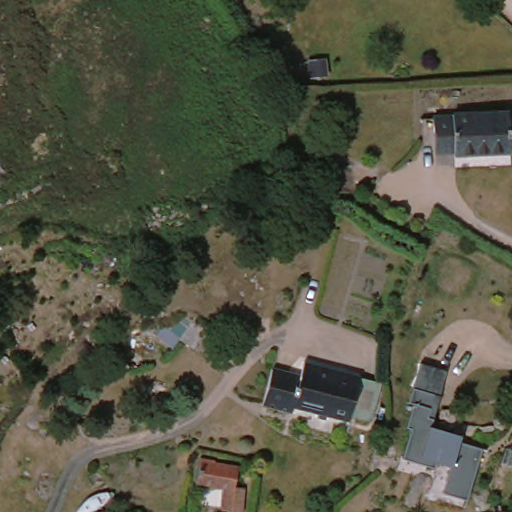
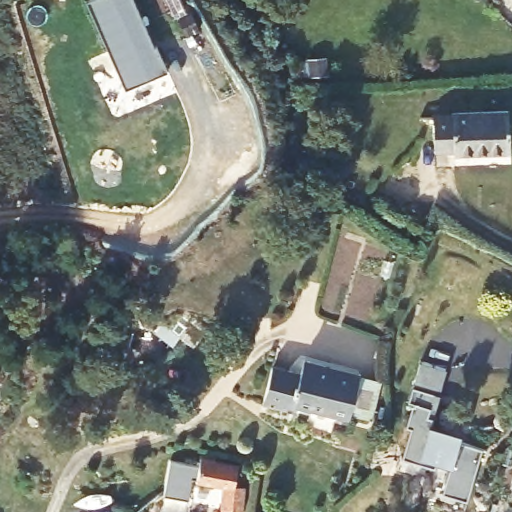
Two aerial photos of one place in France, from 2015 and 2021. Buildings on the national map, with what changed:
new [(89,0),(134,0),(154,44),(156,44),(169,70),(126,89),(87,1),(89,0)]
unchanged [(456,162),(456,158),(434,160),(433,125),(449,124),(449,120),(507,116),(511,159),(456,162)]
unchanged [(474,496),(443,487),(451,461),(399,448),(415,397),(409,394),(420,357),(448,363),(434,420),(469,429),(468,435),(489,440),(474,496)]
unchanged [(269,376),(296,383),(299,370),(361,385),(359,390),(375,394),(364,434),(289,414),(288,420),(259,413),(269,376)]
unchanged [(239,473),(236,492),(245,494),(243,512),(221,512),(223,495),(195,490),(201,465),(239,473)]

